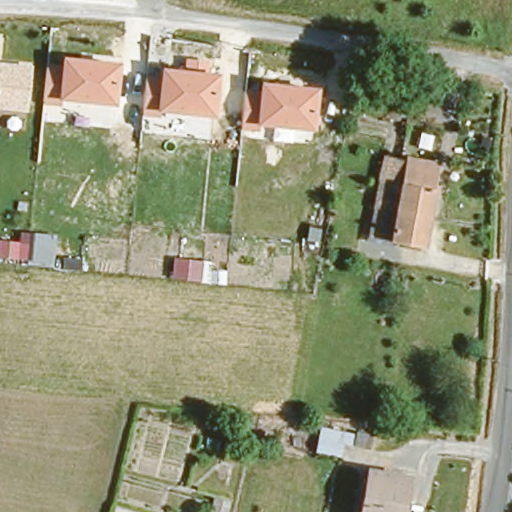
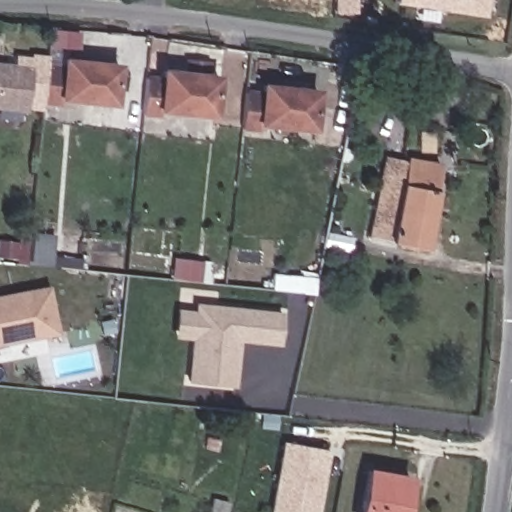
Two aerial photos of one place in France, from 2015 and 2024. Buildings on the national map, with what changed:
new [(396,3),(397,0),(488,0),(485,16),(396,3)]
unchanged [(115,102),(63,98),(62,104),(45,103),(48,66),(64,68),(65,58),(119,64),(115,102)]
unchanged [(32,64),(27,111),(0,109),(0,62),(32,64)]
unchanged [(160,114),(142,112),(145,77),(164,79),(166,70),(220,76),(215,113),(161,108),(160,114)]
unchanged [(313,129),(260,123),(260,129),(240,128),(244,92),(263,94),(265,84),(317,90),(313,129)]
unchanged [(398,199),(408,142),(422,144),(439,146),(437,156),(425,238),(370,230),(372,212),(375,196),(398,199)]
new [(34,234),(57,236),(54,268),(30,266),(34,234)]
new [(55,331),(0,343),(0,295),(45,285),(55,331)]
new [(195,305),(278,313),(276,343),(230,339),(230,350),(235,350),(232,386),(187,382),(195,305)]
demolished [(371,452),(344,446),(340,459),(313,453),(320,425),(375,439),(371,452)]
new [(312,512),(274,512),(268,511),(281,439),(323,447),(312,512)]
unchanged [(365,466),(407,472),(403,512),(359,512),(365,466)]

